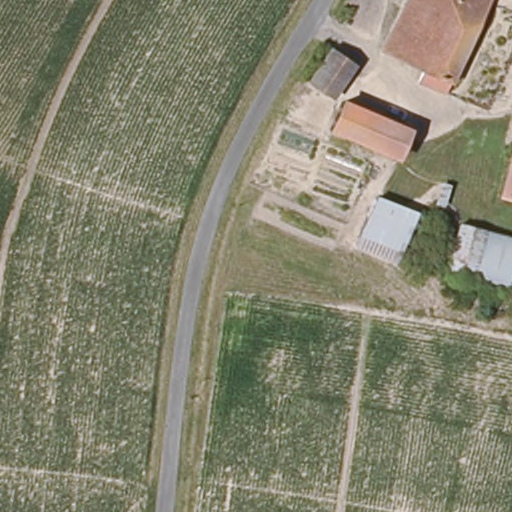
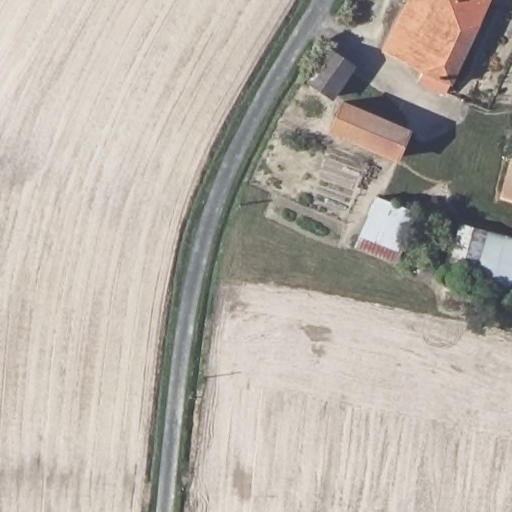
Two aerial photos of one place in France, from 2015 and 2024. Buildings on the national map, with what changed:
unchanged [(433,66),(393,45),(417,0),(494,0),(499,3),(456,90),(441,82),(428,75),(433,66)]
unchanged [(333,95),(311,81),(333,53),(354,66),(333,95)]
unchanged [(395,158),(331,129),(343,102),(406,130),(395,158)]
unchanged [(510,196),(512,192),(512,197),(510,196)]
unchanged [(400,266),(360,250),(383,199),(419,215),(400,266)]
unchanged [(480,287),(450,280),(461,229),(487,235),(480,287)]
unchanged [(512,240),(512,295),(480,287),(487,235),(512,240)]

